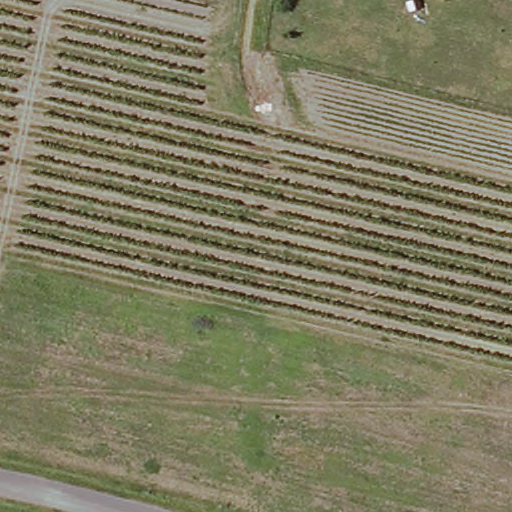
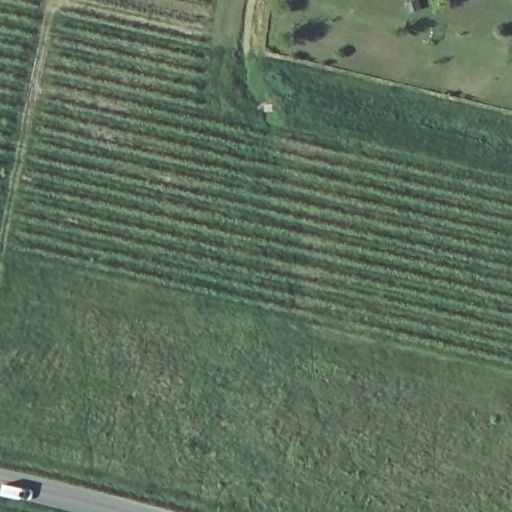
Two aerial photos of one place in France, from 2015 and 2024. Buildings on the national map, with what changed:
[]

